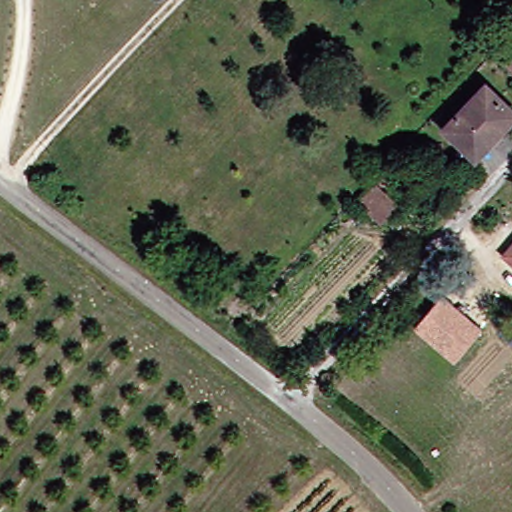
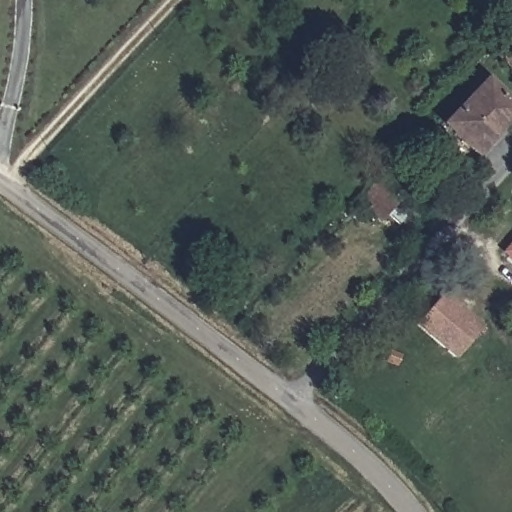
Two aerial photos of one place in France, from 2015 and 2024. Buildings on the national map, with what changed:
unchanged [(502,52),(512,41),(512,62),(502,52)]
unchanged [(476,155),(443,128),(481,83),(512,111),(512,113),(476,155)]
unchanged [(502,254),(512,243),(512,263),(502,254)]
unchanged [(482,330),(452,362),(415,325),(443,295),(482,330)]

